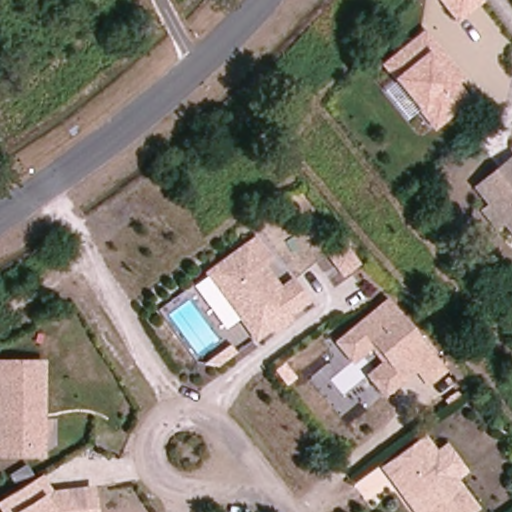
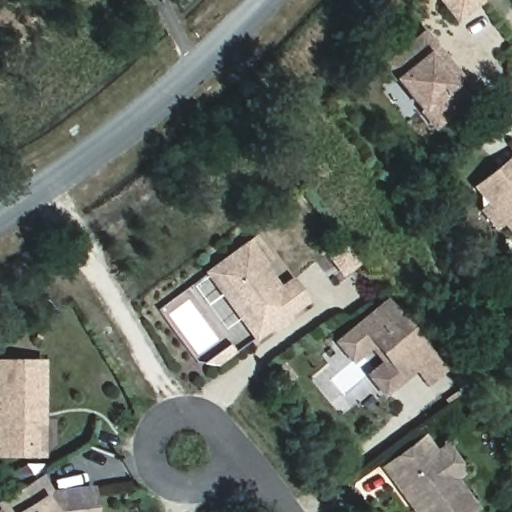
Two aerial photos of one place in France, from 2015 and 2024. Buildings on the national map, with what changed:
unchanged [(456,22),(439,0),(483,0),(483,1),(456,22)]
unchanged [(464,80),(457,86),(468,101),(435,131),(380,63),(426,27),(464,80)]
unchanged [(488,208),(473,191),(483,184),(512,160),(512,236),(504,227),(497,233),(481,215),(488,208)]
unchanged [(209,273),(259,237),(275,258),(266,265),(284,291),(296,282),(310,299),(282,319),(286,323),(278,329),(275,325),(258,337),(244,318),(224,292),(209,273)]
unchanged [(352,263),(337,273),(322,253),(337,242),(352,263)]
unchanged [(362,378),(378,364),(363,347),(344,362),(342,360),(328,344),(387,297),(432,350),(446,365),(420,386),(407,371),(385,389),(377,396),(362,378)]
unchanged [(40,454),(5,455),(5,429),(0,429),(0,370),(40,369),(40,417),(40,426),(40,454)]
unchanged [(425,439),(437,456),(447,448),(466,471),(456,479),(477,508),(472,512),(417,512),(411,505),(384,469),(425,439)]
unchanged [(24,482),(36,475),(47,492),(91,486),(93,512),(1,512),(0,510),(0,497),(24,482)]

